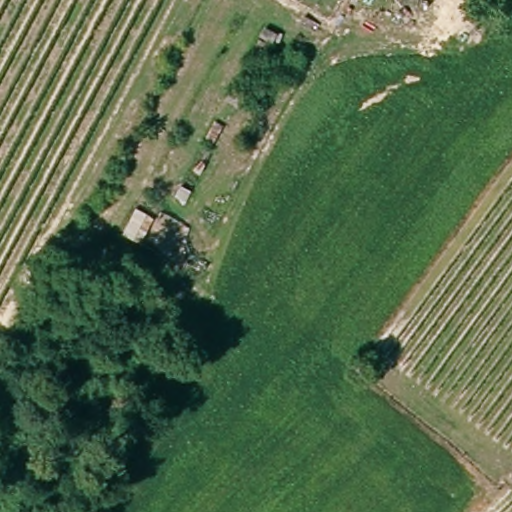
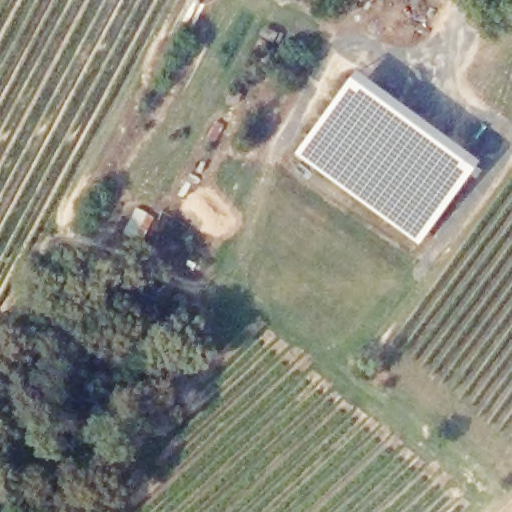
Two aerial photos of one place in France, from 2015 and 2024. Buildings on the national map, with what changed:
new [(350,76),(367,87),(407,119),(475,169),(417,245),(293,154),(350,76)]

